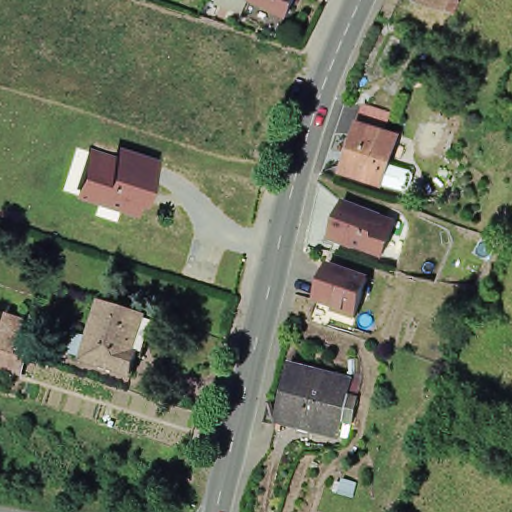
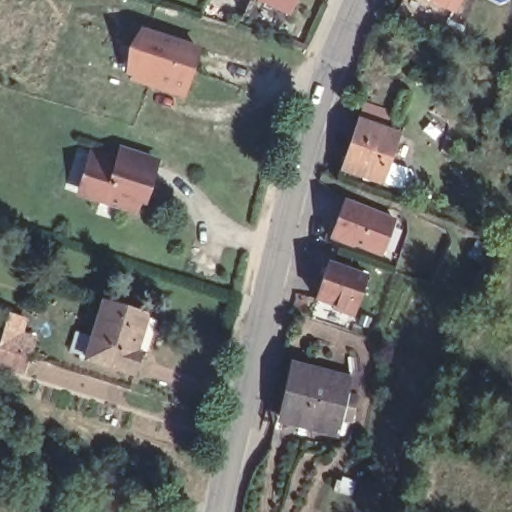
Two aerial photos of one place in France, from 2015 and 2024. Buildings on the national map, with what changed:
unchanged [(285,16),(253,0),(293,0),(285,16)]
unchanged [(452,12),(451,14),(425,0),(472,0),(463,18),(452,12)]
new [(201,49),(184,100),(128,82),(130,78),(125,76),(140,28),(201,49)]
unchanged [(375,84),(370,97),(348,89),(355,76),(375,84)]
unchanged [(387,184),(347,169),(362,123),(403,137),(387,184)]
unchanged [(87,147),(115,155),(117,146),(157,159),(144,206),(137,204),(135,215),(74,197),(87,147)]
unchanged [(393,216),(382,257),(325,239),(340,197),(393,216)]
unchanged [(366,273),(354,314),(310,302),(326,259),(366,273)]
unchanged [(79,361),(97,302),(142,316),(153,320),(140,360),(137,359),(130,378),(79,361)]
unchanged [(0,344),(7,325),(24,331),(20,345),(34,350),(27,370),(22,386),(0,379),(0,344)]
unchanged [(347,419),(335,416),(331,430),(276,417),(288,362),(344,375),(341,388),(353,390),(349,407),(347,419)]

